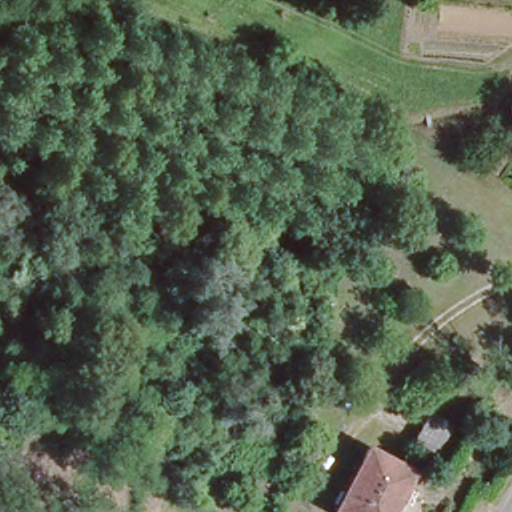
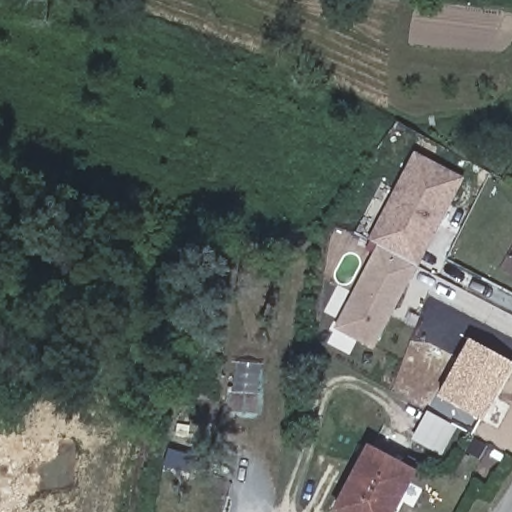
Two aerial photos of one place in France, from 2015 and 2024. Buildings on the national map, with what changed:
new [(371,347),(333,328),(376,247),(365,242),(412,151),(462,178),(371,347)]
new [(481,421),(437,397),(469,340),(512,364),(481,421)]
unchanged [(453,419),(439,446),(415,432),(427,406),(453,419)]
unchanged [(365,445),(400,464),(408,454),(418,457),(411,471),(403,469),(383,511),(385,512),(337,512),(361,466),(355,461),(365,445)]

